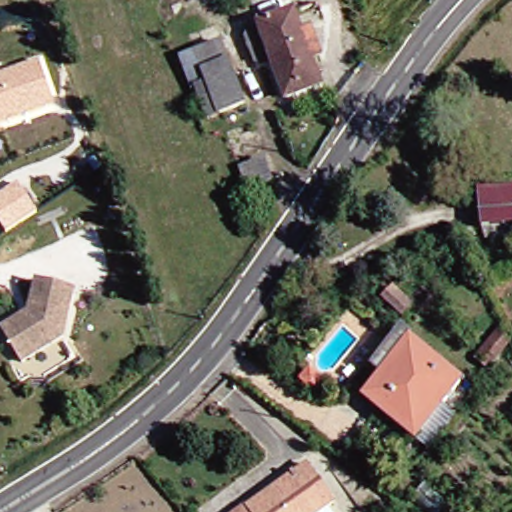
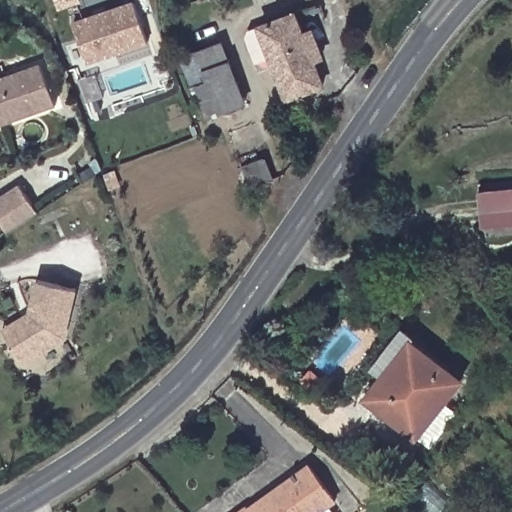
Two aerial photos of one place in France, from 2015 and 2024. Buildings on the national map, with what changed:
new [(132,2),(146,41),(86,62),(72,23),(132,2)]
unchanged [(318,85),(282,98),(267,56),(251,62),(242,36),(245,29),(292,13),(318,85)]
unchanged [(239,110),(203,124),(192,93),(188,94),(177,62),(217,48),(239,110)]
unchanged [(1,76),(2,80),(42,66),(57,108),(0,128),(0,76),(1,76)]
unchanged [(270,180),(246,189),(239,168),(263,159),(270,180)]
new [(19,185),(38,213),(7,233),(0,221),(0,197),(19,185)]
unchanged [(473,194),(512,190),(512,221),(476,224),(473,194)]
unchanged [(7,325),(22,314),(24,317),(28,314),(24,308),(31,283),(70,293),(59,338),(18,364),(7,345),(0,334),(0,329),(7,325)]
unchanged [(403,315),(385,300),(394,289),(412,305),(403,315)]
unchanged [(415,438),(366,398),(380,381),(370,373),(401,334),(411,342),(460,382),(442,404),(455,416),(429,449),(415,438)]
unchanged [(488,366),(477,358),(492,340),(502,348),(488,366)]
unchanged [(415,463),(412,467),(401,459),(404,454),(415,463)]
unchanged [(242,508),(289,473),(290,474),(302,465),(328,501),(313,512),(236,512),(242,508)]

